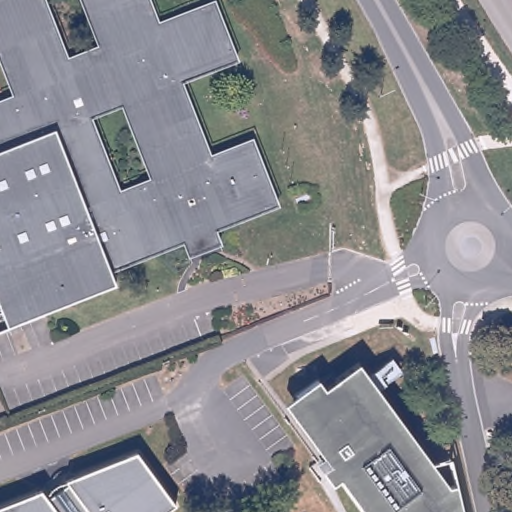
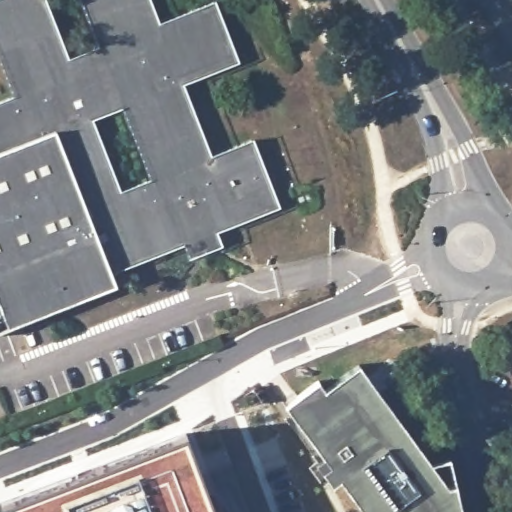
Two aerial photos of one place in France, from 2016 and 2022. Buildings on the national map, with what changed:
unchanged [(191,249),(189,243),(115,272),(120,285),(0,333),(0,104),(18,97),(0,50),(0,0),(49,0),(72,60),(104,47),(85,0),(154,0),(163,25),(219,2),(242,62),(186,84),(215,157),(257,141),(282,206),(219,231),(221,237),(225,244),(194,256),(191,249)]
unchanged [(339,485),(331,491),(320,476),(328,471),(290,419),(302,410),(296,402),(317,386),(324,395),(358,370),(447,492),(455,490),(460,512),(359,512),(339,485)]
new [(215,512),(0,512),(0,503),(185,431),(215,512)]
demolished [(0,509),(46,491),(52,498),(71,483),(69,481),(142,452),(180,507),(173,512),(0,512),(0,509)]

